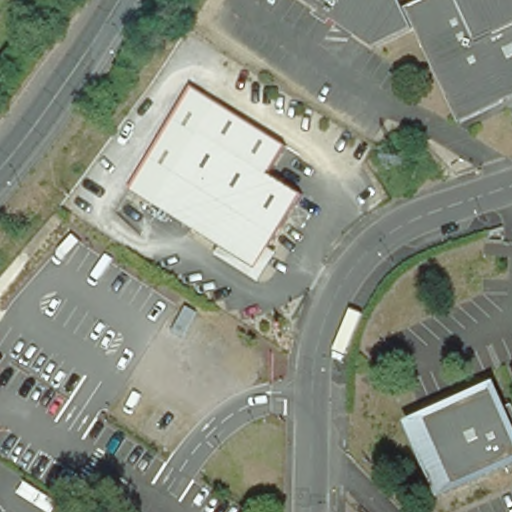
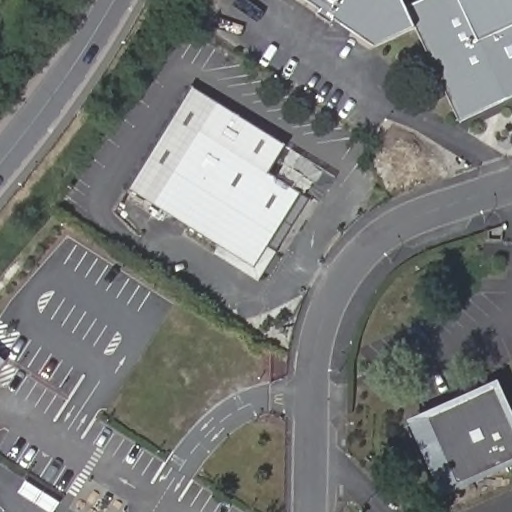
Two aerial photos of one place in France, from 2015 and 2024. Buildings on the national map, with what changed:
unchanged [(512,90),(511,90),(510,90),(509,89),(508,89),(497,93),(503,105),(490,111),(457,126),(413,31),(372,50),(350,35),(332,23),(329,28),(314,17),(317,12),(299,0),(398,0),(403,11),(427,0),(512,0),(512,90)]
unchanged [(153,205),(127,189),(184,97),(190,87),(216,103),(209,114),(199,131),(153,205)]
unchanged [(285,146),(277,158),(268,174),(199,131),(209,114),(216,103),(285,146)]
unchanged [(199,131),(268,174),(301,194),(278,229),(263,255),(267,257),(257,275),(228,256),(231,252),(222,247),(153,205),(199,131)]
unchanged [(0,367),(1,367),(0,369),(0,367)]
unchanged [(497,387),(512,418),(512,464),(441,497),(408,430),(497,387)]

